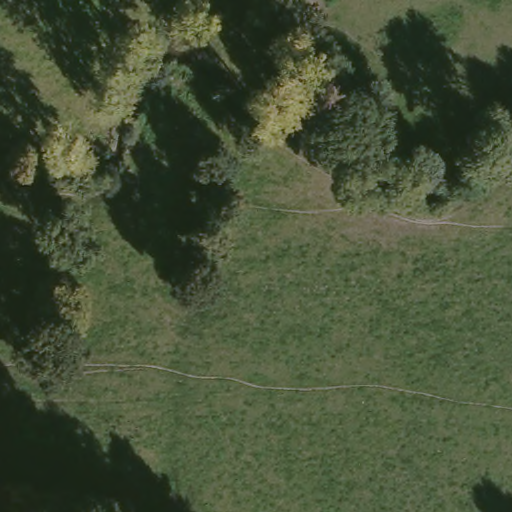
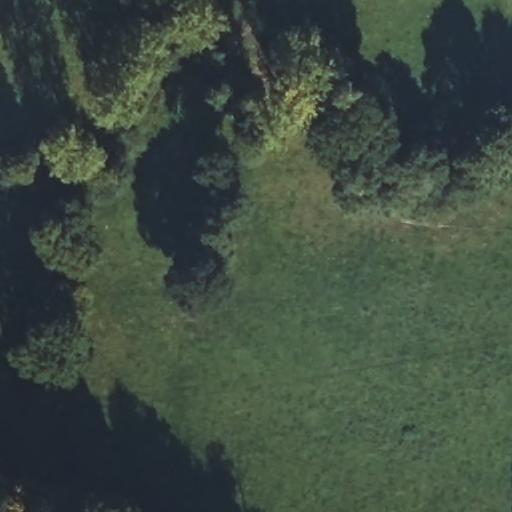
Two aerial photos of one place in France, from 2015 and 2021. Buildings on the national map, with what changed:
[]

